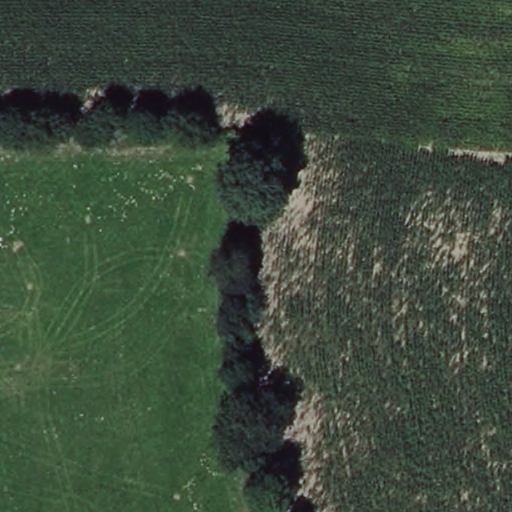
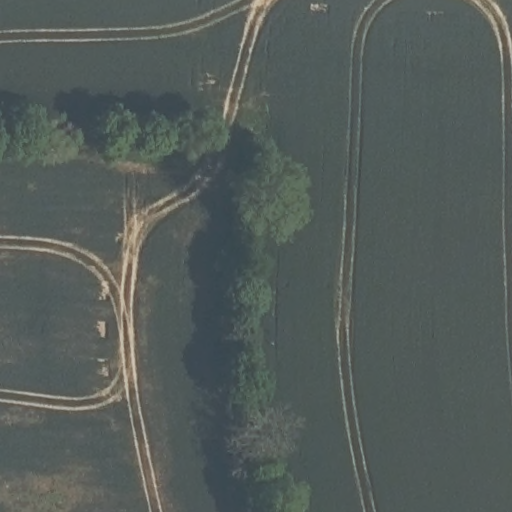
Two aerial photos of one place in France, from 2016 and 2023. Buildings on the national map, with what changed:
[]

